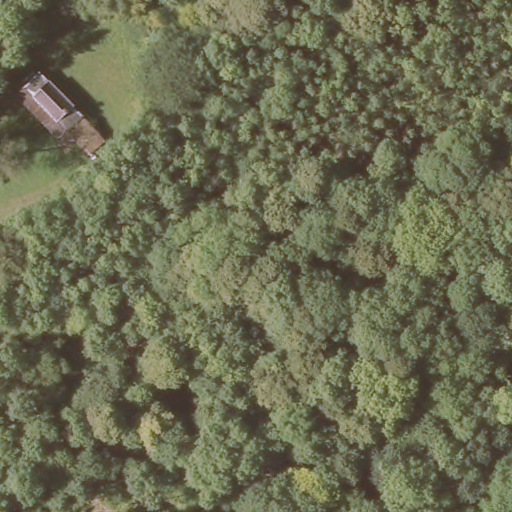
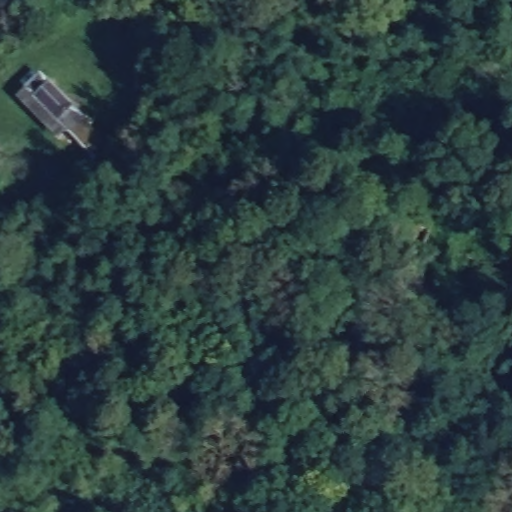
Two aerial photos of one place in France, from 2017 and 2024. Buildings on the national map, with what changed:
unchanged [(52,81),(75,105),(85,118),(95,130),(83,141),(67,131),(58,139),(17,98),(27,86),(42,74),(52,81)]

